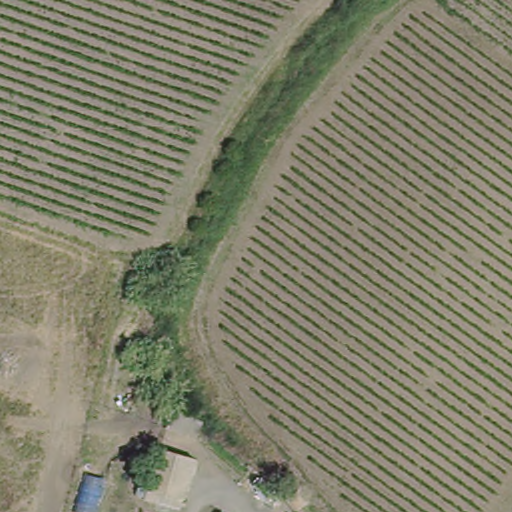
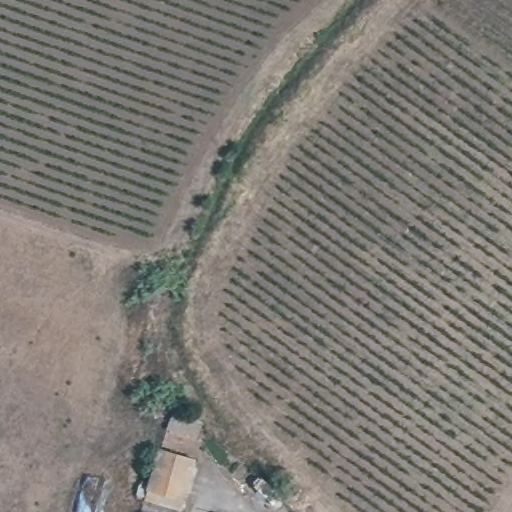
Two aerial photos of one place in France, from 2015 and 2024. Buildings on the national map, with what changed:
unchanged [(166,427),(178,404),(205,418),(195,441),(166,427)]
unchanged [(145,502),(158,442),(181,445),(195,450),(182,512),(177,512),(168,507),(152,503),(145,502)]

